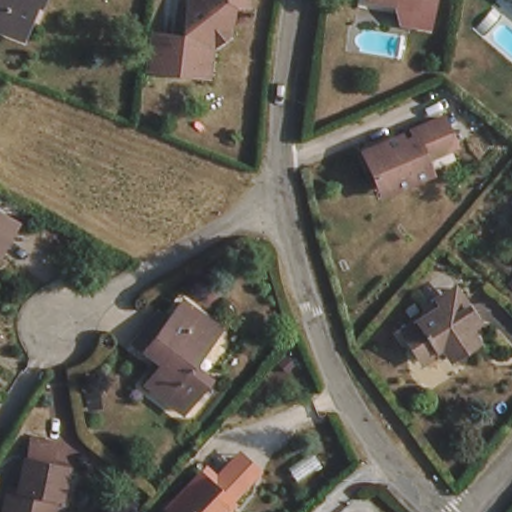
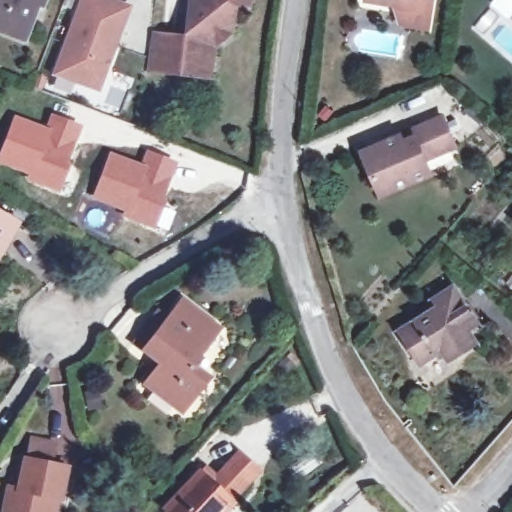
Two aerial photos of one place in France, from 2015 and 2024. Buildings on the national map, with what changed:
unchanged [(41,3),(36,1),(21,33),(0,24),(0,0),(42,0),(41,3)]
new [(78,0),(115,0),(130,5),(99,93),(51,77),(78,0)]
unchanged [(193,71),(181,70),(142,65),(147,27),(184,31),(187,0),(245,0),(245,2),(230,0),(228,27),(211,41),(207,73),(193,71)]
unchanged [(383,0),(391,0),(391,1),(383,0)]
unchanged [(428,24),(404,20),(398,3),(398,0),(430,0),(428,24)]
unchanged [(413,135),(410,130),(442,115),(455,145),(426,158),(432,172),(381,197),(361,152),(399,134),(402,140),(413,135)]
new [(30,177),(32,172),(0,160),(0,156),(16,118),(48,131),(54,116),(78,125),(62,164),(67,166),(59,188),(30,177)]
new [(111,155),(141,166),(147,152),(173,162),(158,200),(163,202),(154,225),(124,213),(126,209),(95,196),(111,155)]
unchanged [(15,222),(0,248),(0,214),(15,222)]
unchanged [(459,326),(467,338),(450,350),(442,339),(424,351),(405,321),(442,297),(437,290),(455,278),(460,286),(477,313),(459,326)]
unchanged [(149,316),(158,323),(179,296),(215,324),(187,362),(205,375),(181,407),(144,380),(158,361),(130,340),(149,316)]
unchanged [(256,474),(234,504),(201,471),(232,445),(256,474)]
unchanged [(13,478),(24,480),(30,451),(72,462),(65,492),(59,491),(54,512),(10,512),(6,511),(13,478)]
unchanged [(201,471),(234,504),(226,512),(170,512),(166,507),(201,471)]

